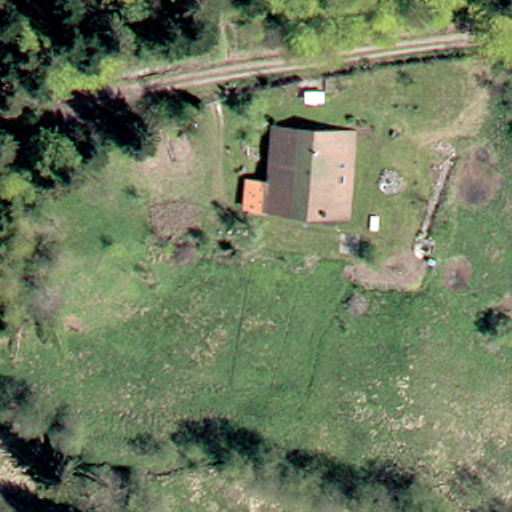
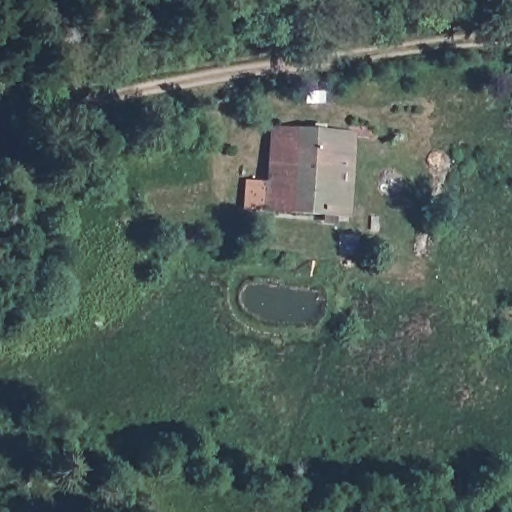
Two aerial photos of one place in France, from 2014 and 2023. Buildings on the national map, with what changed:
unchanged [(285,204),(247,200),(250,172),(284,175),(288,134),(350,137),(354,219),(284,212),(285,204)]

